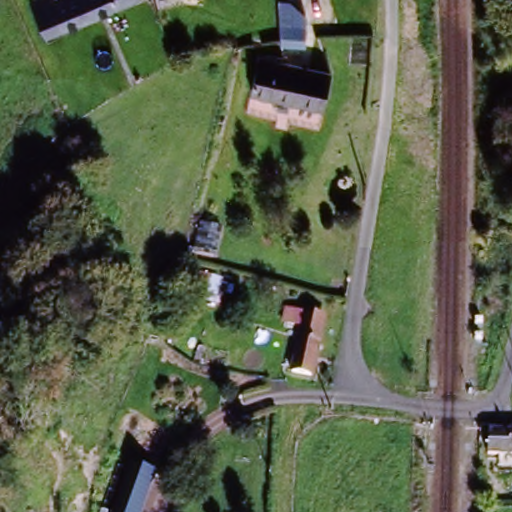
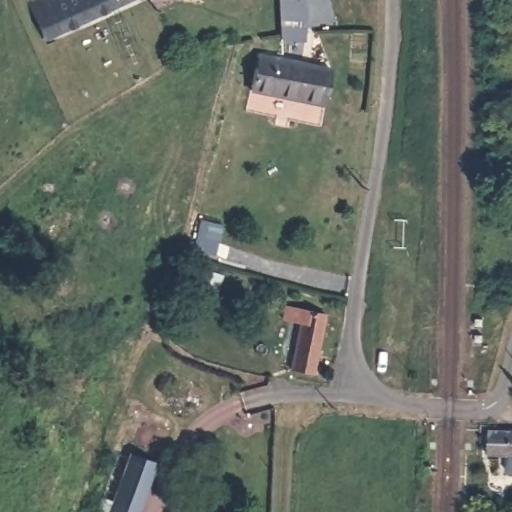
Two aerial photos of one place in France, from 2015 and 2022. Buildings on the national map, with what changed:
unchanged [(85,0),(55,16),(67,38),(56,44),(36,9),(53,0),(85,0)]
unchanged [(55,16),(85,0),(136,0),(67,38),(55,16)]
unchanged [(290,4),(290,0),(309,0),(310,31),(279,28),(278,4),(290,4)]
unchanged [(255,86),(258,66),(325,77),(318,113),(283,107),(253,103),(255,86)]
unchanged [(189,250),(197,220),(222,224),(212,254),(189,250)]
unchanged [(293,368),(302,320),(322,324),(315,372),(293,368)]
unchanged [(512,462),(482,462),(483,439),(500,440),(512,440),(512,462)]
unchanged [(130,456),(160,464),(143,512),(110,512),(130,456)]

